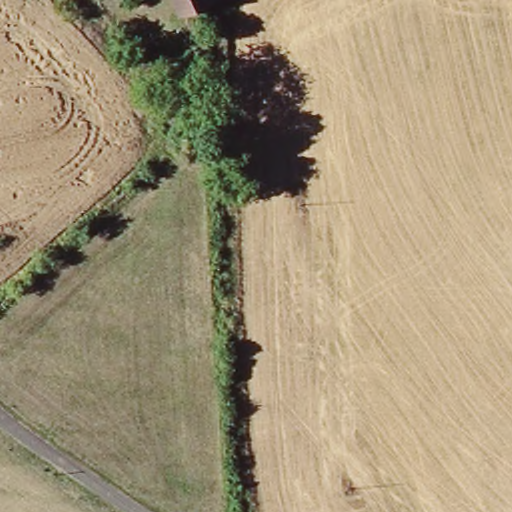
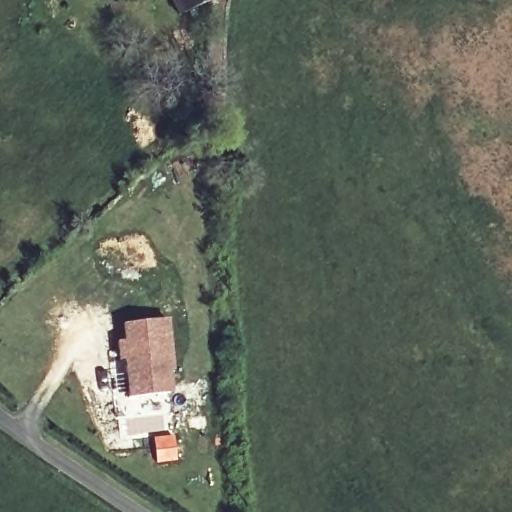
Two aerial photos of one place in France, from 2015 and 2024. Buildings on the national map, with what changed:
unchanged [(179,17),(172,0),(208,0),(209,3),(179,17)]
new [(173,371),(169,373),(171,392),(128,397),(124,363),(118,364),(116,342),(123,341),(121,324),(167,318),(173,371)]

